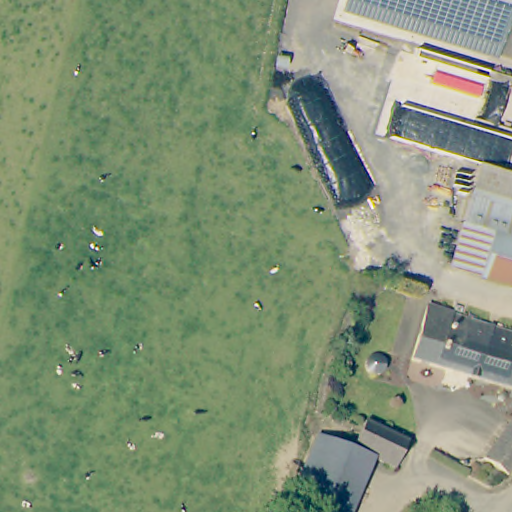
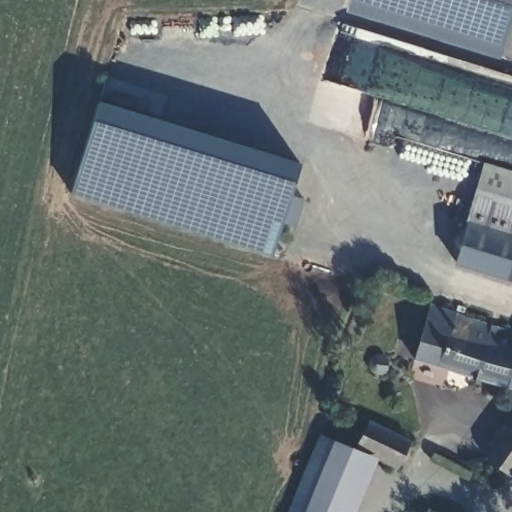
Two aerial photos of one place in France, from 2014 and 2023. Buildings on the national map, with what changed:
unchanged [(499,55),(497,60),(345,11),(349,0),(512,0),(512,11),(503,40),(512,43),(512,58),(499,55)]
unchanged [(503,40),(512,11),(512,43),(503,40)]
new [(72,193),(99,102),(300,162),(290,197),(301,201),(293,227),(280,224),(271,254),(72,193)]
unchanged [(482,164),(512,172),(512,255),(460,240),(482,164)]
unchanged [(460,240),(512,255),(512,282),(453,265),(457,252),(460,240)]
unchanged [(415,360),(431,305),(512,328),(512,387),(415,360)]
demolished [(425,366),(504,422),(481,456),(401,398),(425,366)]
unchanged [(357,449),(369,421),(410,440),(398,467),(371,455),(357,449)]
unchanged [(486,467),(512,424),(512,473),(507,480),(486,467)]
unchanged [(292,512),(322,435),(357,449),(371,455),(347,512),(292,512)]

